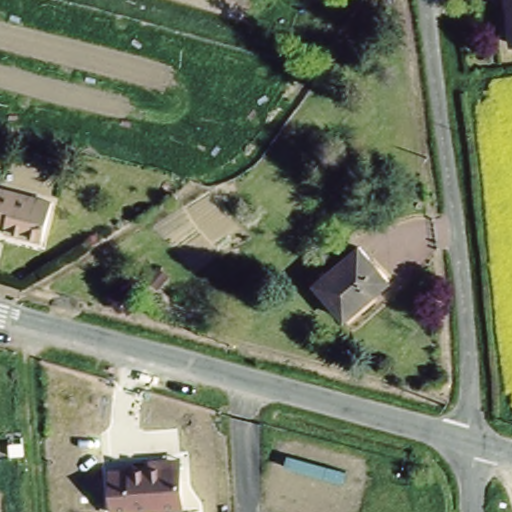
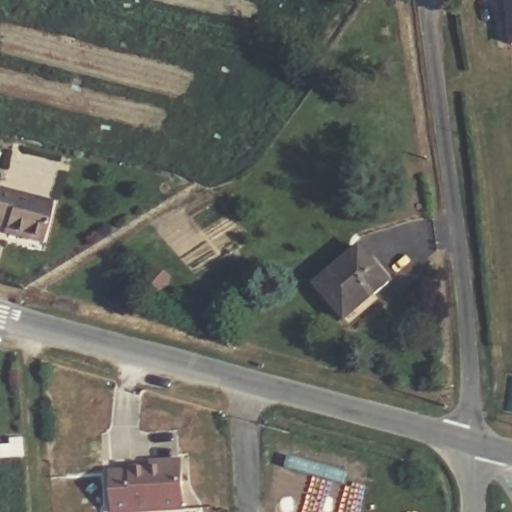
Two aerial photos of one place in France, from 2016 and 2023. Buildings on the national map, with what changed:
unchanged [(512,0),(512,41),(509,41),(503,0),(512,0)]
unchanged [(41,242),(4,232),(7,224),(0,222),(0,189),(0,188),(52,203),(41,242)]
unchanged [(365,249),(390,283),(342,318),(317,284),(365,249)]
unchanged [(347,468),(343,481),(285,464),(288,452),(347,468)]
unchanged [(126,474),(126,470),(148,469),(148,465),(176,464),(179,510),(149,512),(110,512),(108,475),(126,474)]

